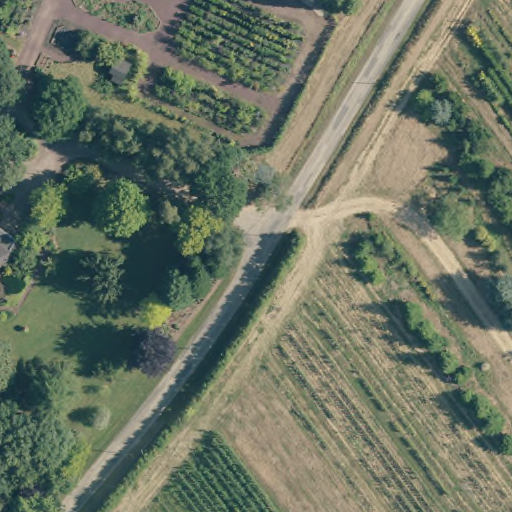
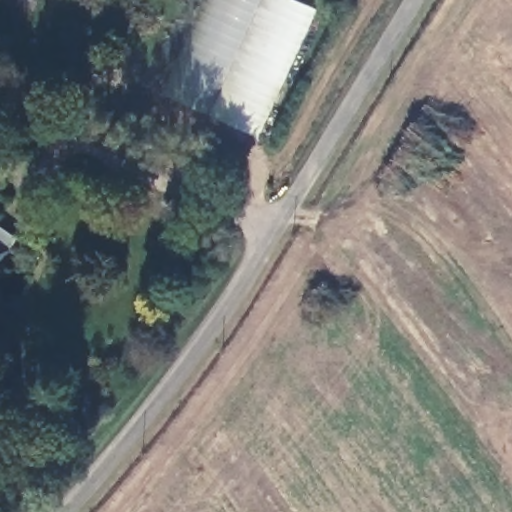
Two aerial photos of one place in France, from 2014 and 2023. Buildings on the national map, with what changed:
new [(298,0),(316,9),(256,136),(169,95),(211,0),(298,0)]
unchanged [(1,235),(6,230),(25,245),(22,250),(29,254),(0,289),(0,234),(1,235)]

